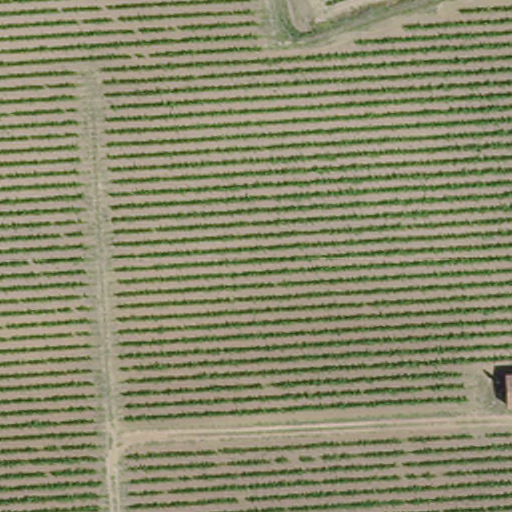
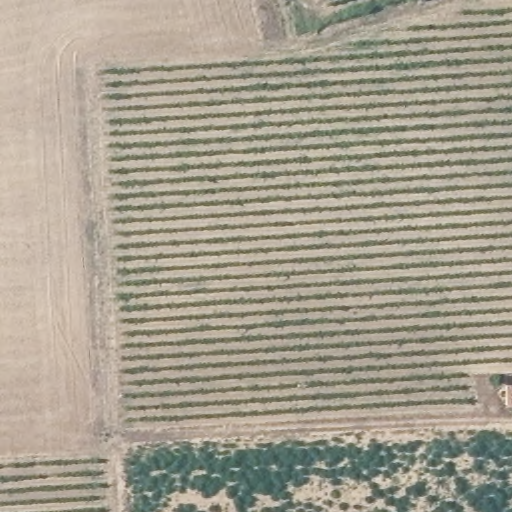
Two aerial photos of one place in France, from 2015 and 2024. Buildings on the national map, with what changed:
unchanged [(504,371),(512,371),(512,403),(503,403),(504,390),(504,371)]

